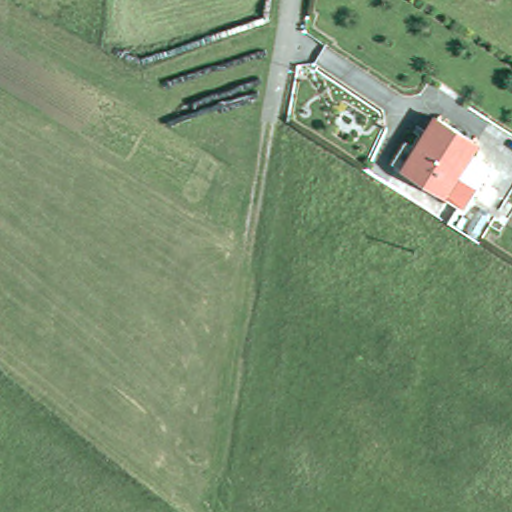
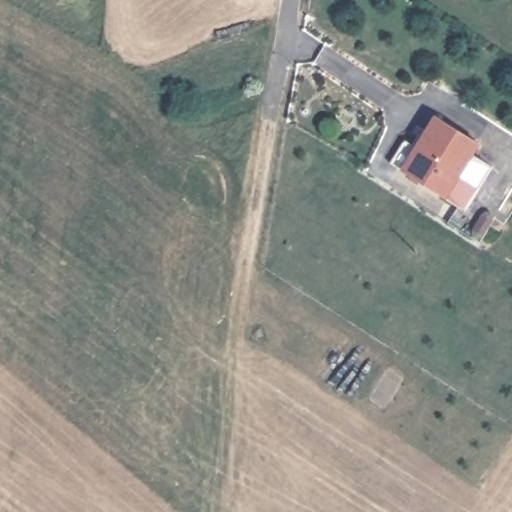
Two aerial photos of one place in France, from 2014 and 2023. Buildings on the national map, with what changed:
unchanged [(483,188),(469,211),(404,172),(437,118),(480,144),(473,155),(495,169),(483,188)]

